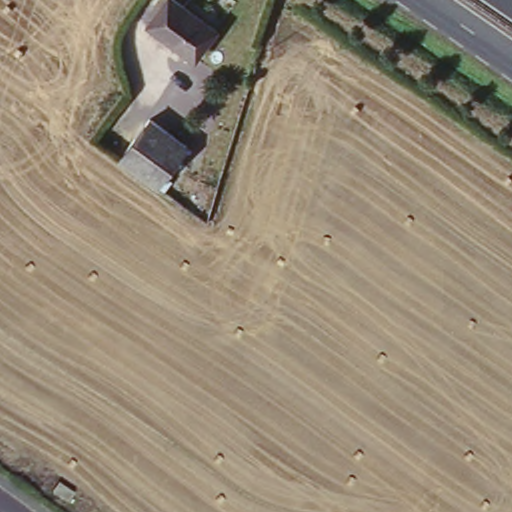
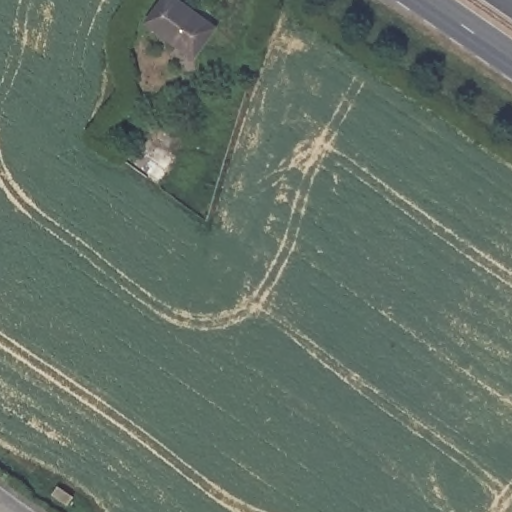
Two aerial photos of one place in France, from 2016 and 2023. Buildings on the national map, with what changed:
unchanged [(164,0),(185,0),(217,24),(197,55),(150,20),(164,0)]
unchanged [(151,114),(189,141),(160,181),(121,153),(151,114)]

